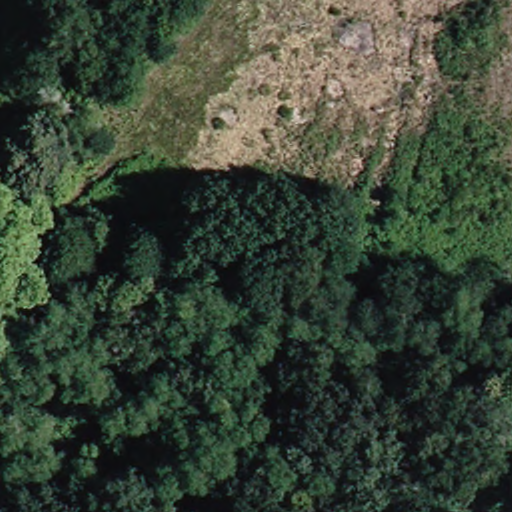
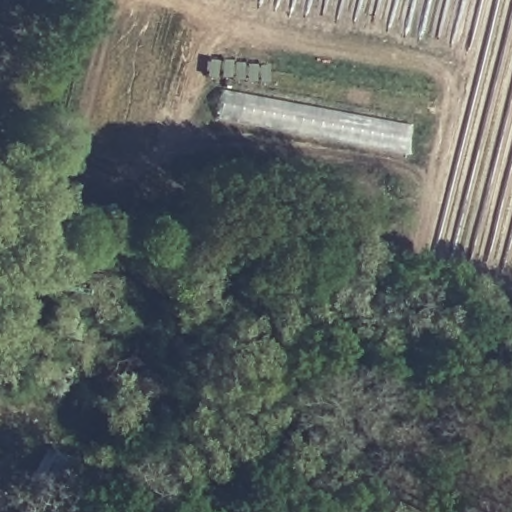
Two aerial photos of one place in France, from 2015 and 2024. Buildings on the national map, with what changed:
new [(405,157),(218,122),(225,91),(412,127),(405,157)]

